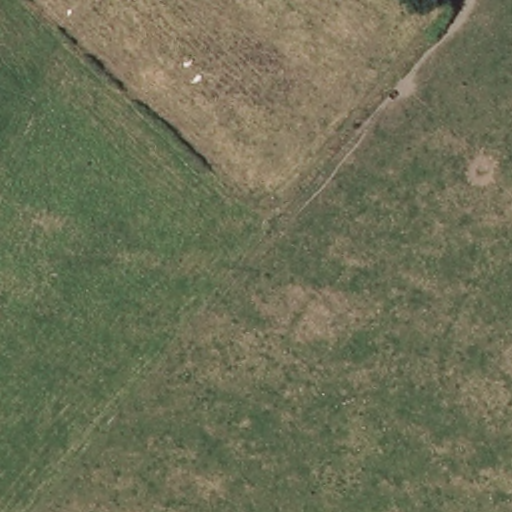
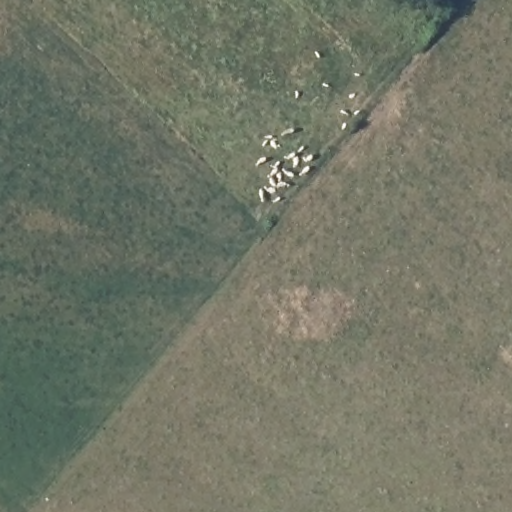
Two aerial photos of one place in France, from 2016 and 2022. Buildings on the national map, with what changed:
[]

